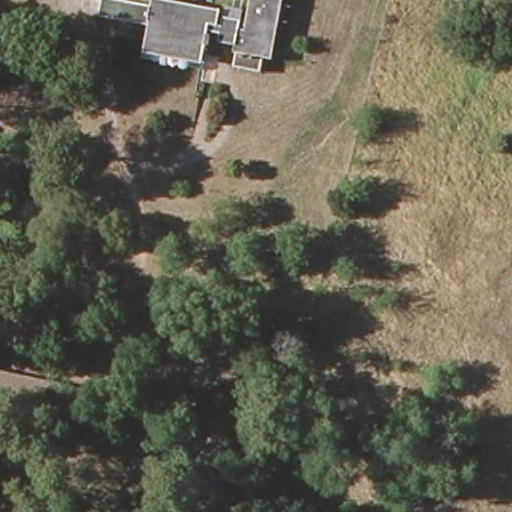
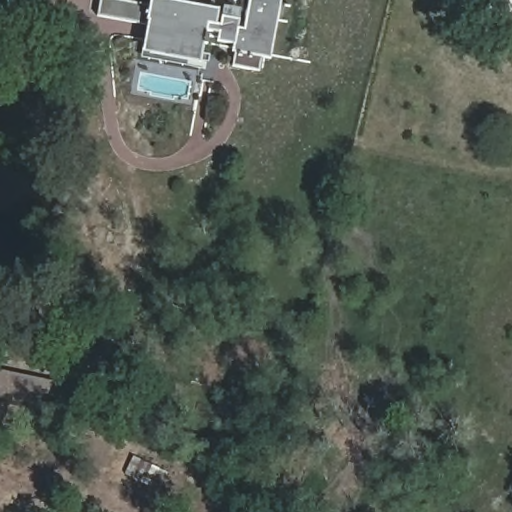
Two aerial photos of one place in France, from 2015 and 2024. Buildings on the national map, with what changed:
unchanged [(147,1),(219,15),(218,22),(217,29),(221,30),(223,24),(240,27),(239,34),(245,35),(252,0),(285,0),(272,65),(231,56),(233,48),(218,46),(220,36),(211,34),(206,57),(146,46),(147,40),(149,29),(142,27),(85,17),(88,0),(101,0),(145,9),(147,1)]
unchanged [(204,67),(185,62),(184,67),(136,58),(142,27),(149,29),(147,40),(146,46),(206,57),(204,67)]
unchanged [(80,388),(76,416),(0,400),(0,373),(80,388)]

